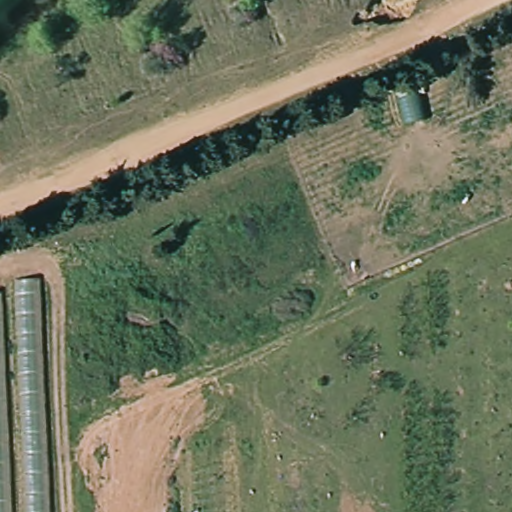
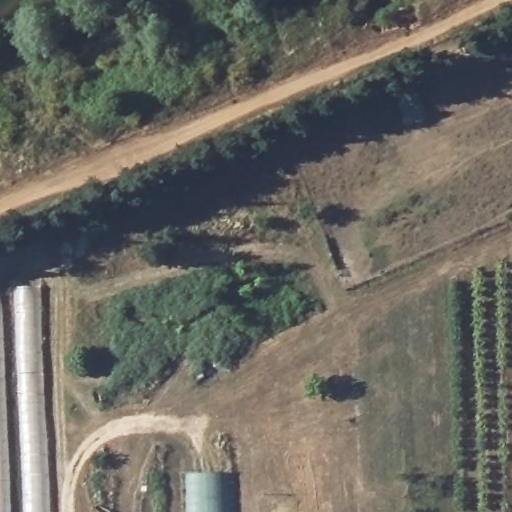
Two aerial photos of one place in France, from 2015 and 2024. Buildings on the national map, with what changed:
unchanged [(0,288),(30,276),(48,512),(0,512),(0,288)]
new [(186,475),(230,472),(231,512),(186,512),(186,475)]

